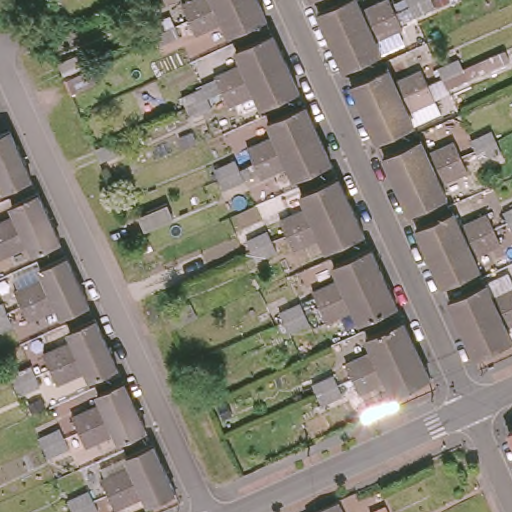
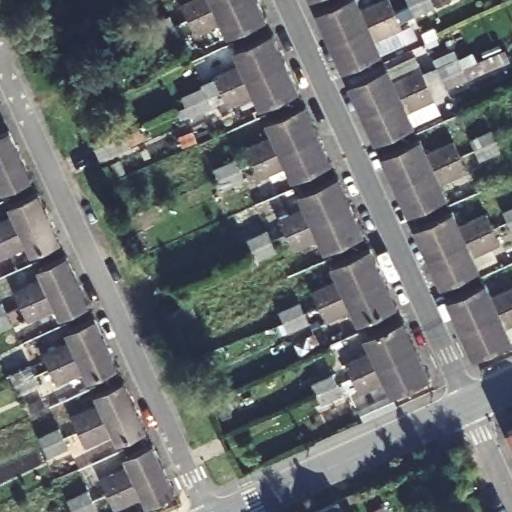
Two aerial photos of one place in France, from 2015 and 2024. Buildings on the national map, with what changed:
unchanged [(182,0),(215,0),(199,7),(188,12),(182,0)]
unchanged [(199,7),(215,0),(263,0),(268,11),(231,27),(223,11),(193,25),(188,12),(199,7)]
unchanged [(323,26),(314,9),(336,0),(356,0),(359,8),(378,0),(391,0),(394,7),(328,37),(323,26)]
unchanged [(436,6),(416,15),(411,5),(409,0),(433,0),(436,6)]
unchanged [(394,7),(401,20),(371,33),(379,50),(341,67),(328,37),(394,7)]
unchanged [(152,48),(148,39),(143,27),(163,19),(168,29),(173,39),(152,48)]
unchanged [(221,85),(214,71),(244,58),(238,41),(275,25),(288,55),(221,85)]
unchanged [(84,62),(59,73),(53,60),(78,49),(84,62)]
unchanged [(291,60),(301,82),(264,100),(256,84),(226,97),(221,85),(288,55),(291,60)]
unchanged [(449,89),(444,78),(439,65),(459,57),(464,69),(469,80),(449,89)]
unchanged [(360,110),(348,81),(385,65),(392,80),(422,67),(428,80),(361,110),(360,110)]
unchanged [(93,80),(68,91),(61,77),(86,66),(93,80)]
unchanged [(433,92),(404,105),(412,122),(374,139),(361,110),(428,80),(433,92)]
unchanged [(185,120),(181,110),(176,100),(196,91),(201,101),(206,111),(185,120)]
unchanged [(253,161),(247,147),(278,135),(270,118),(308,101),(321,131),(253,161)]
unchanged [(12,126),(24,152),(0,163),(0,132),(12,126)]
unchanged [(481,157),(477,148),(471,135),(492,127),(497,140),(501,149),(481,157)]
unchanged [(329,147),(334,160),(296,176),(289,160),(259,174),(253,161),(321,131),(329,147)]
unchanged [(380,152),(418,136),(424,151),(454,139),(459,150),(393,181),(380,152)]
unchanged [(128,151),(103,162),(96,149),(121,137),(128,151)]
unchanged [(467,165),(437,177),(444,194),(407,210),(393,181),(459,150),(467,165)]
unchanged [(24,152),(31,170),(34,176),(7,188),(2,177),(0,178),(0,163),(24,152)]
unchanged [(238,182),(217,191),(213,182),(208,170),(228,160),(233,173),(238,182)]
unchanged [(280,219),(310,206),(303,190),(340,174),(347,189),(353,201),(286,232),(280,219)]
unchanged [(0,233),(0,217),(18,209),(13,197),(40,185),(52,210),(0,233)]
unchanged [(366,230),(366,231),(329,248),(322,232),(292,245),(286,232),(353,201),(366,230)]
unchanged [(504,208),(512,204),(512,226),(510,221),(504,208)]
unchanged [(418,234),(413,224),(451,207),(458,223),(487,210),(493,224),(427,254),(418,234)]
unchanged [(60,229),(63,235),(36,246),(30,235),(3,246),(0,240),(0,233),(52,210),(60,229)]
unchanged [(493,224),(499,235),(469,249),(477,265),(439,281),(437,275),(427,254),(493,224)]
unchanged [(249,261),(246,253),(241,242),(261,234),(266,244),(269,252),(249,261)]
unchanged [(319,305),(313,291),(343,278),(335,261),(373,245),(386,272),(387,274),(319,305)]
unchanged [(20,284),(48,272),(43,260),(69,249),(80,273),(26,296),(20,284)]
unchanged [(80,273),(89,293),(91,298),(65,309),(59,297),(32,309),(26,296),(80,273)]
unchanged [(399,302),(361,320),(354,304),(324,317),(319,305),(387,274),(399,302)]
unchanged [(464,325),(461,317),(451,296),(488,280),(495,295),(512,287),(512,303),(467,323),(464,325)]
unchanged [(0,328),(0,305),(4,303),(8,312),(13,321),(0,328)]
unchanged [(176,326),(174,327),(168,315),(194,303),(199,316),(176,326)]
unchanged [(512,332),(512,339),(477,353),(464,325),(467,323),(512,303),(512,317),(507,320),(512,332)]
unchanged [(303,324),(282,333),(279,325),(274,314),(293,305),(299,316),(303,324)]
unchanged [(54,359),(48,346),(75,334),(71,322),(97,311),(108,335),(54,359)]
unchanged [(351,376),(346,362),(376,350),(369,334),(407,317),(419,345),(351,376)]
unchanged [(118,358),(119,360),(93,372),(88,361),(60,372),(54,359),(108,335),(118,358)]
unchanged [(433,375),(394,392),(387,375),(358,388),(351,376),(419,345),(433,375)]
unchanged [(41,385),(20,395),(15,384),(11,375),(33,365),(36,375),(41,385)]
unchanged [(316,406),(311,397),(306,386),(326,377),(331,388),(336,397),(316,406)]
unchanged [(82,415),(109,403),(104,391),(131,380),(141,403),(88,427),(82,415)]
unchanged [(153,428),(126,440),(121,428),(93,440),(88,427),(141,403),(153,428)]
unchanged [(512,426),(512,438),(508,428),(512,426)]
unchanged [(49,458),(44,447),(39,437),(61,428),(65,438),(70,449),(49,458)]
unchanged [(110,473),(138,461),(133,449),(159,437),(170,462),(116,486),(110,473)]
unchanged [(170,462),(181,487),(155,499),(149,487),(122,498),(116,486),(170,462)]
unchanged [(97,512),(73,512),(73,511),(68,501),(89,491),(94,501),(98,511),(97,512)]
unchanged [(341,497),(348,512),(330,512),(326,504),(341,497)]
unchanged [(330,512),(309,512),(326,504),(330,512)]
unchanged [(367,512),(382,505),(385,512),(367,512)]

